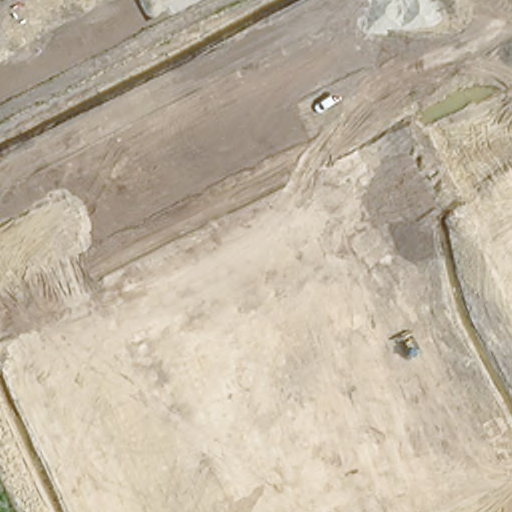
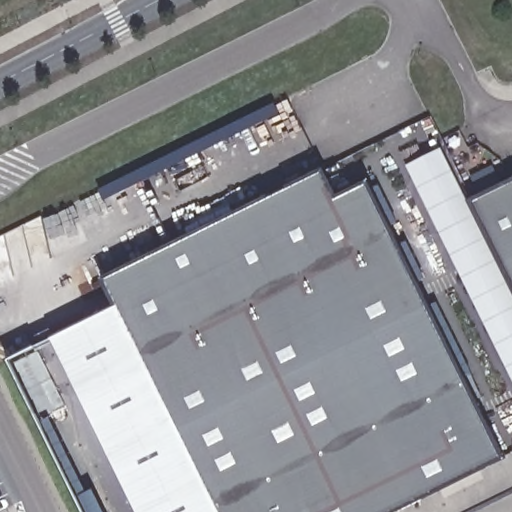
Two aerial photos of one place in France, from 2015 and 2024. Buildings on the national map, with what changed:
new [(441,147),(469,199),(512,178),(512,384),(403,166),(441,147)]
new [(505,457),(394,512),(135,512),(49,339),(120,304),(106,276),(321,170),(335,197),(372,179),(505,457)]

